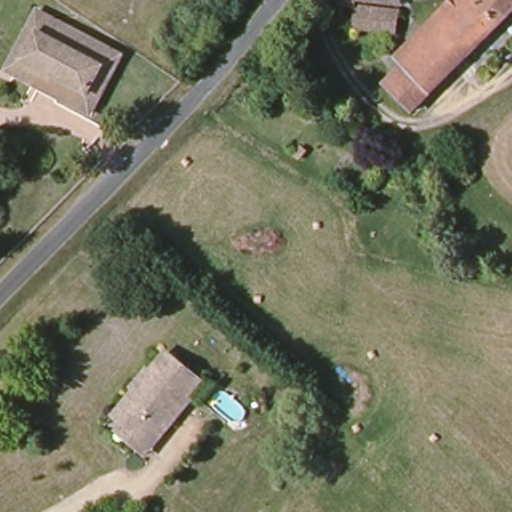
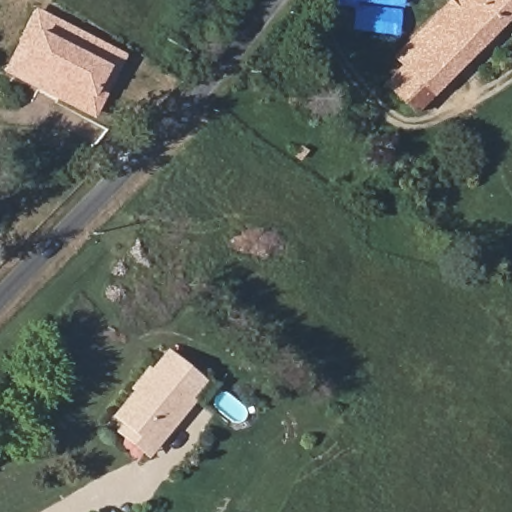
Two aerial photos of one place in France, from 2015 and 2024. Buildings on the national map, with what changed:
unchanged [(395,27),(357,24),(357,16),(346,16),(340,10),(340,0),(357,0),(357,4),(395,7),(395,27)]
unchanged [(406,63),(397,55),(453,0),(512,0),(512,9),(433,90),(406,63)]
unchanged [(27,62),(93,93),(105,67),(115,47),(125,51),(97,112),(10,72),(38,11),(48,16),(27,62)]
unchanged [(27,62),(48,16),(115,47),(105,67),(93,93),(27,62)]
unchanged [(412,111),(385,83),(406,63),(433,90),(412,111)]
unchanged [(116,429),(122,421),(112,411),(165,349),(197,376),(182,395),(187,399),(162,428),(144,451),(116,429)]

